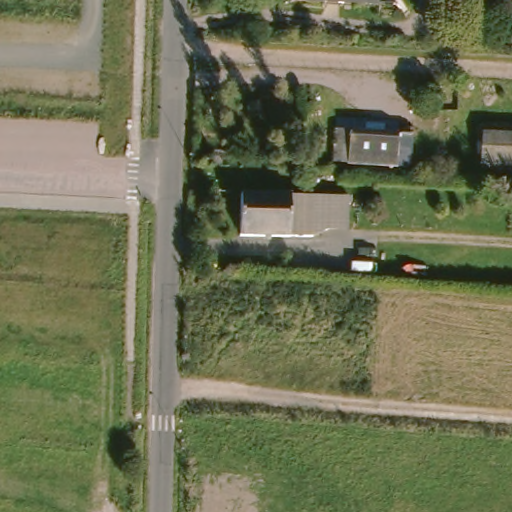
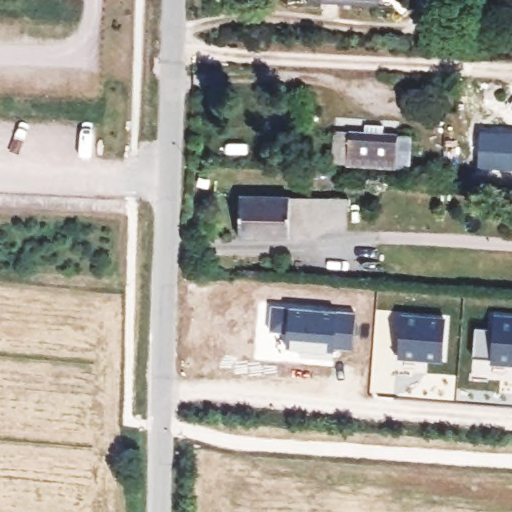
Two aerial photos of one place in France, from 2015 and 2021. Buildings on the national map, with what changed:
unchanged [(376,3),(331,0),(377,0),(376,3)]
demolished [(458,91),(509,93),(508,114),(459,112),(458,91)]
unchanged [(338,133),(373,135),(374,128),(387,129),(386,136),(403,137),(401,166),(337,163),(338,133)]
unchanged [(512,131),(512,163),(478,161),(481,129),(512,131)]
unchanged [(311,204),(309,245),(236,241),(239,199),(311,204)]
unchanged [(311,204),(342,206),(340,241),(332,240),(309,245),(311,204)]
new [(284,351),(285,336),(268,334),(269,309),(354,316),(351,353),(332,352),(332,355),(331,362),(298,359),(299,352),(284,351)]
new [(492,316),(512,318),(512,364),(489,363),(489,359),(472,357),(473,328),(491,329),(492,316)]
new [(392,355),(396,355),(398,319),(443,323),(440,360),(391,356),(392,355)]

